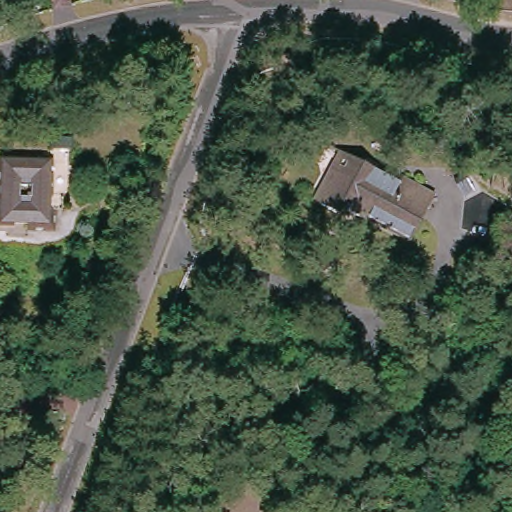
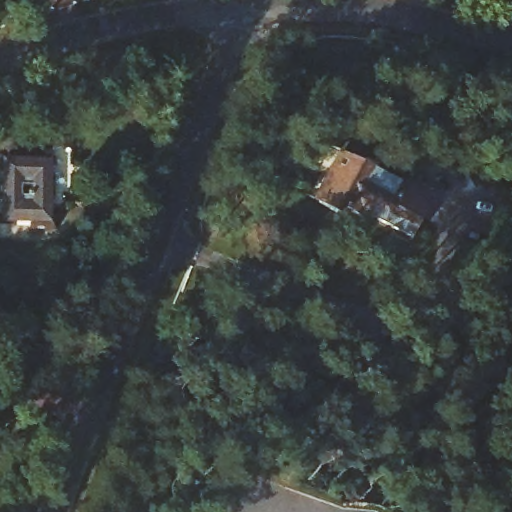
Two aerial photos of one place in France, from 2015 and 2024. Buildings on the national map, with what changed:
unchanged [(267,56),(276,70),(260,80),(250,67),(267,56)]
unchanged [(400,176),(404,172),(437,191),(412,239),(350,206),(347,214),(316,198),(345,147),(400,176)]
unchanged [(51,226),(0,228),(0,154),(51,151),(51,226)]

